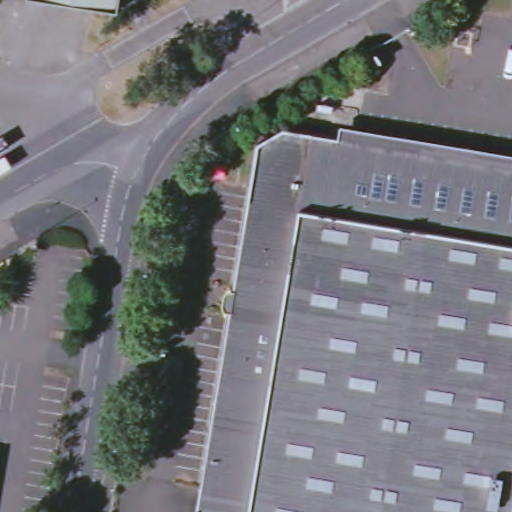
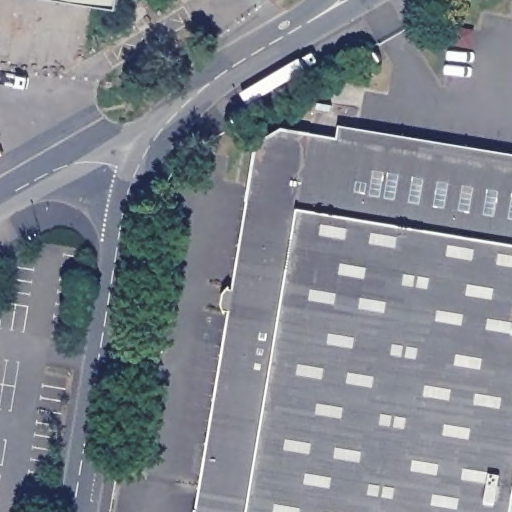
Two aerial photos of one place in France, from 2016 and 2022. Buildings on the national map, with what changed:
unchanged [(121,8),(69,0),(122,0),(121,8)]
unchanged [(333,128),(512,158),(512,171),(331,139),(333,128)]
unchanged [(222,315),(217,314),(214,305),(215,293),(221,287),(225,289),(242,183),(248,144),(277,129),(308,135),(331,139),(512,171),(512,501),(510,512),(188,512),(215,354),(222,315)]

